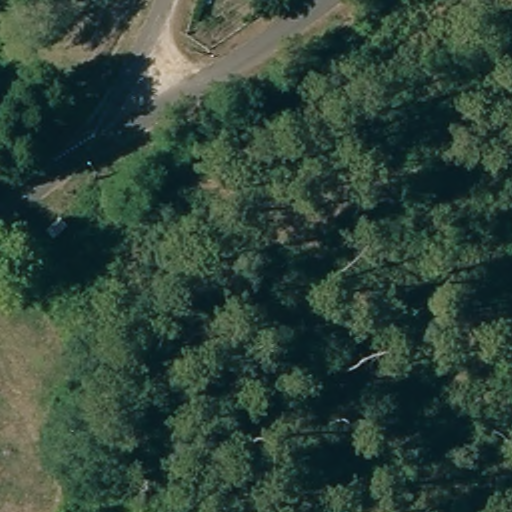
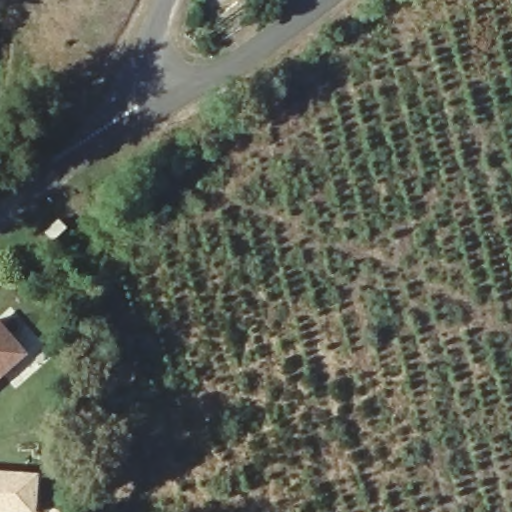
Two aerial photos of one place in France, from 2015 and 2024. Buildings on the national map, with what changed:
unchanged [(62,222),(68,229),(66,231),(67,233),(54,241),(47,232),(62,222)]
new [(32,342),(0,370),(0,317),(6,312),(32,342)]
new [(38,512),(0,512),(0,470),(41,473),(38,512)]

